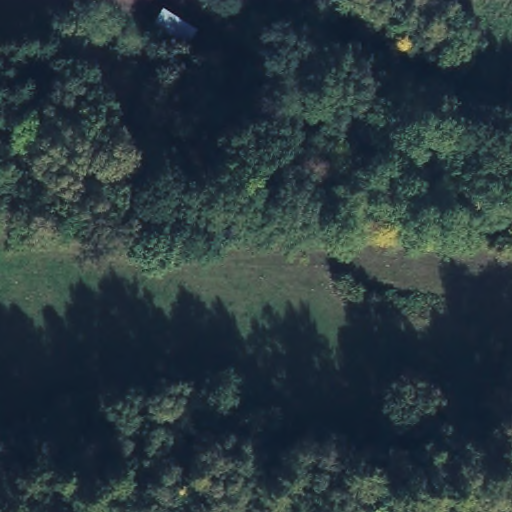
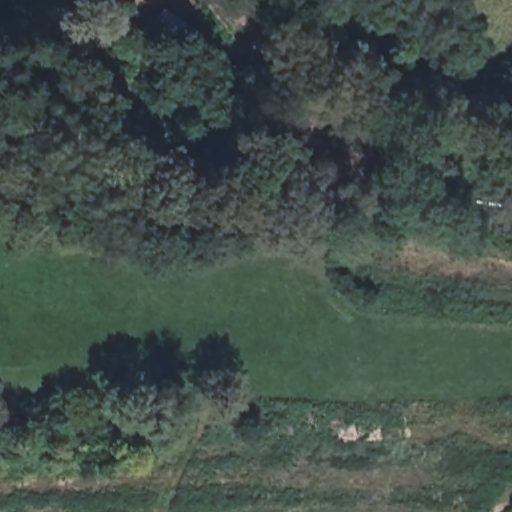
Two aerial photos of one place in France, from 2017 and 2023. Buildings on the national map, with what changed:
unchanged [(199,31),(187,48),(153,26),(165,10),(199,31)]

